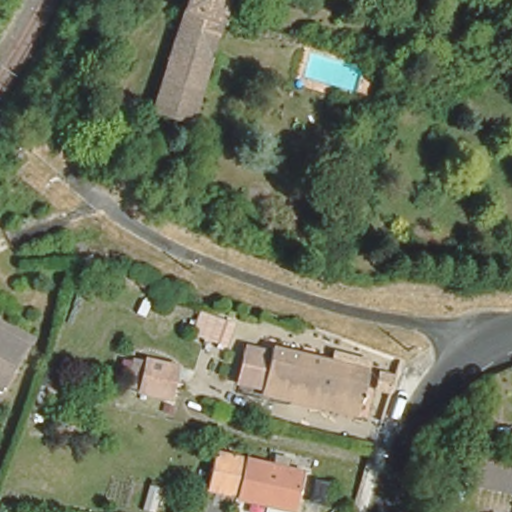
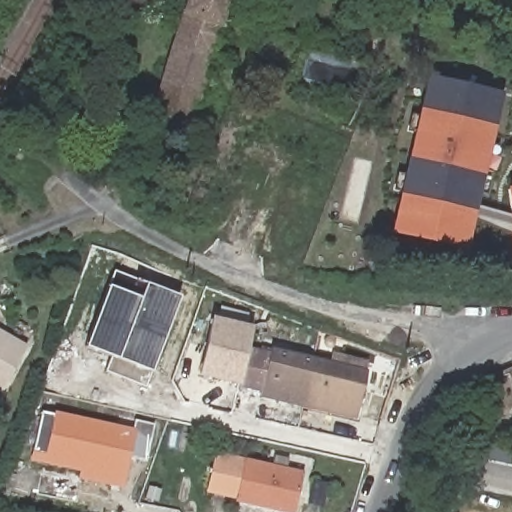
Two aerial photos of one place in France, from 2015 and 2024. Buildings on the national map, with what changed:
unchanged [(232,0),(224,24),(188,131),(151,120),(191,0),(232,0)]
new [(509,90),(474,250),(396,233),(431,73),(509,90)]
new [(512,191),(511,186),(512,186),(512,191)]
new [(176,296),(157,344),(149,340),(145,349),(154,353),(140,388),(100,372),(106,358),(80,348),(110,270),(176,296)]
demolished [(214,344),(199,339),(208,316),(223,322),(214,344)]
new [(196,376),(208,318),(246,327),(233,384),(196,376)]
unchanged [(4,388),(0,386),(0,324),(31,342),(4,388)]
new [(364,372),(354,416),(256,394),(257,389),(233,384),(241,350),(264,355),(265,350),(364,372)]
demolished [(379,372),(369,416),(270,394),(272,389),(248,384),(256,350),(279,355),(280,350),(379,372)]
demolished [(170,401),(136,394),(145,357),(180,364),(170,401)]
new [(131,431),(134,420),(154,424),(145,462),(127,457),(120,484),(81,476),(83,469),(30,458),(40,412),(131,431)]
unchanged [(235,508),(238,494),(212,488),(221,449),(275,462),(278,451),(291,454),(290,465),(306,469),(296,508),(295,512),(254,512),(235,508)]
unchanged [(467,487),(473,456),(512,464),(512,495),(495,492),(467,487)]
unchanged [(161,487),(156,512),(142,512),(138,511),(144,483),(161,487)]

